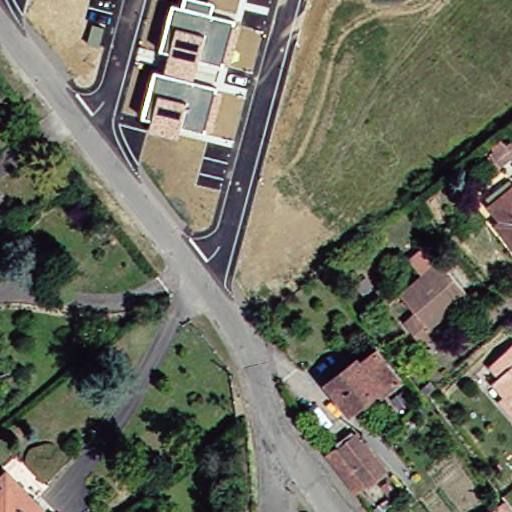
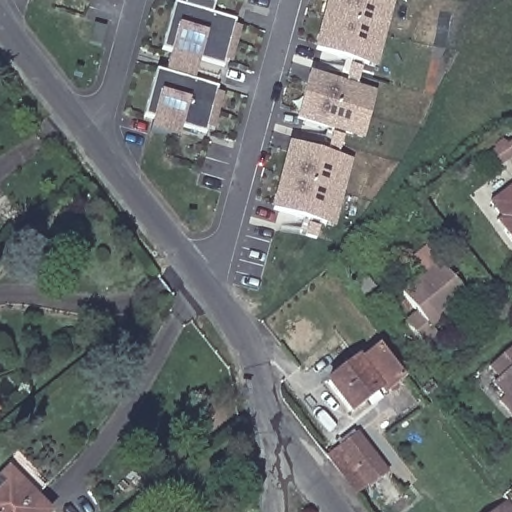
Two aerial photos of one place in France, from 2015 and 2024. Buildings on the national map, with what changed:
unchanged [(234,21),(233,27),(239,29),(230,64),(222,61),(221,66),(199,60),(193,81),(218,88),(217,92),(222,94),(213,130),(205,129),(204,133),(182,127),(178,138),(147,130),(151,119),(141,116),(152,70),(165,74),(170,52),(162,50),(173,5),(184,8),(186,0),(204,0),(214,3),(211,15),(234,21)]
new [(314,52),(329,0),(398,0),(379,70),(365,66),(359,84),(378,91),(365,139),(345,134),(339,156),(354,160),(336,228),(271,211),(290,143),(328,153),(334,131),(297,121),(311,71),(347,80),(352,62),(314,52)]
unchanged [(512,262),(486,229),(490,225),(479,209),(506,188),(512,195),(512,262)]
unchanged [(425,328),(431,335),(418,345),(400,324),(412,314),(396,295),(417,277),(405,262),(422,247),(463,296),(425,328)]
unchanged [(501,397),(489,383),(495,378),(485,367),(511,343),(512,344),(512,420),(495,401),(501,397)]
unchanged [(356,365),(359,369),(376,356),(400,386),(383,399),(380,395),(350,418),(327,389),(356,365)]
unchanged [(5,409),(0,413),(0,404),(5,409)]
unchanged [(385,474),(369,487),(368,485),(355,495),(326,457),(353,435),(385,474)]
unchanged [(39,512),(0,512),(0,474),(1,473),(39,512)]
unchanged [(501,501),(510,512),(487,512),(501,501)]

